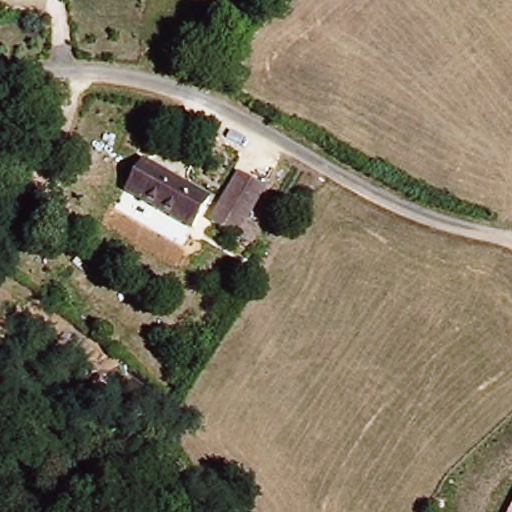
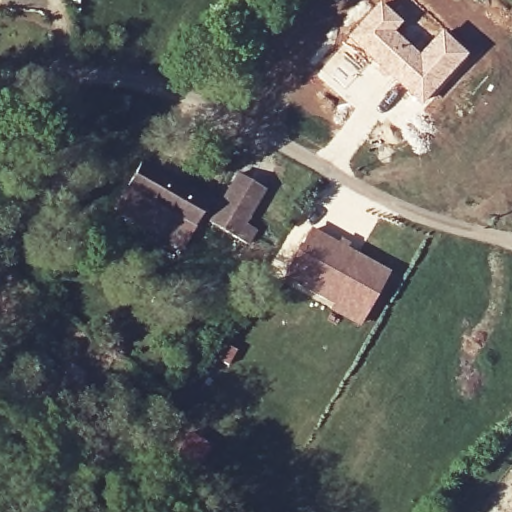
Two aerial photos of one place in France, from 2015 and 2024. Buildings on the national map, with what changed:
new [(379,2),(402,23),(395,31),(418,52),(441,30),(468,54),(422,104),(378,66),(347,36),(379,2)]
unchanged [(120,191),(135,162),(205,200),(190,228),(120,191)]
unchanged [(237,173),(262,187),(243,221),(259,230),(251,244),(210,222),(237,173)]
new [(360,328),(328,310),(331,303),(282,276),(311,227),(336,242),(340,237),(350,243),(347,248),(390,272),(360,328)]
unchanged [(512,512),(510,512),(512,507),(512,512)]

